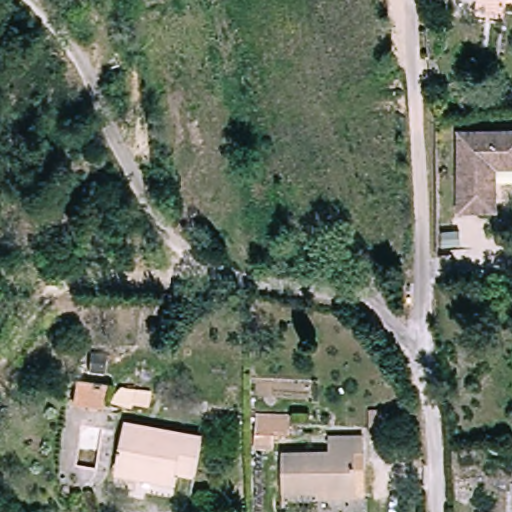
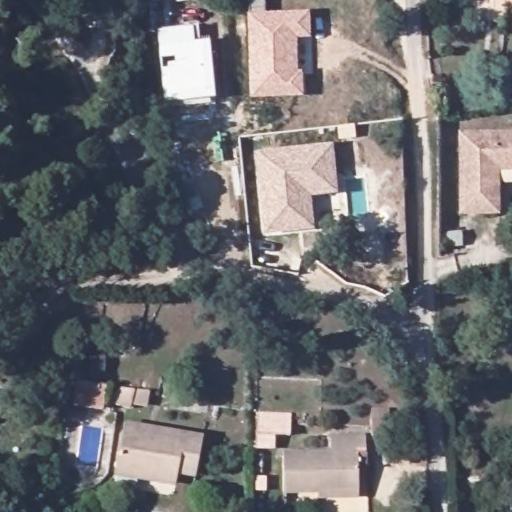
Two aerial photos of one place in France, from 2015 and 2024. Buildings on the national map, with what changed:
new [(298,98),(251,99),(248,0),(263,0),(264,15),(310,13),(311,39),(296,39),(298,98)]
unchanged [(486,2),(486,0),(512,0),(512,5),(486,2)]
new [(209,99),(210,104),(171,107),(171,102),(164,103),(158,30),(192,25),(193,41),(210,39),(216,98),(209,99)]
unchanged [(503,172),(502,217),(463,216),(467,133),(512,133),(512,172),(503,172)]
new [(334,192),(299,196),(302,228),(268,232),(264,188),(263,178),(261,155),(331,149),(334,192)]
unchanged [(73,406),(76,382),(103,387),(99,411),(73,406)]
unchanged [(131,390),(146,392),(143,407),(128,404),(127,409),(108,406),(108,400),(110,395),(116,388),(131,390)]
unchanged [(259,451),(259,442),(260,437),(261,420),(262,416),(298,417),(297,439),(282,438),(282,452),(259,451)]
unchanged [(209,438),(203,476),(186,473),(184,485),(125,477),(132,427),(209,438)]
unchanged [(338,454),(338,437),(373,437),(373,455),(364,455),(364,497),(323,498),(323,493),(289,494),(291,455),(338,454)]
demolished [(511,480),(512,479),(512,505),(511,480)]

